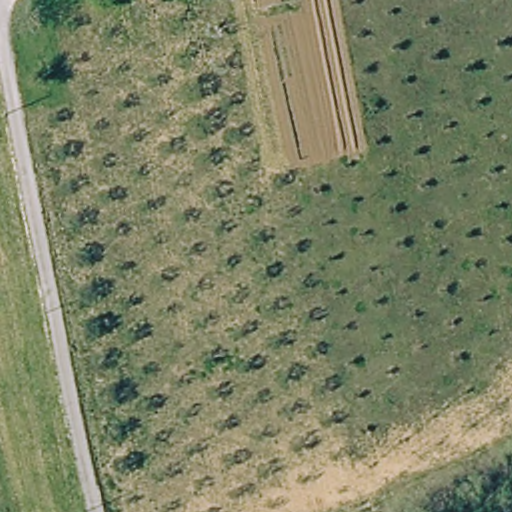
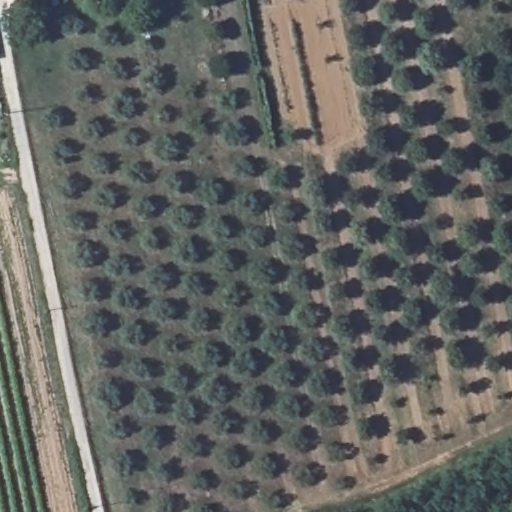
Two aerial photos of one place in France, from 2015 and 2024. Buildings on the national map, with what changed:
[]

